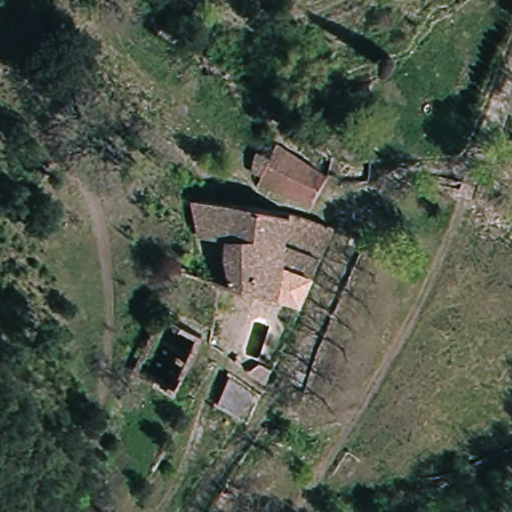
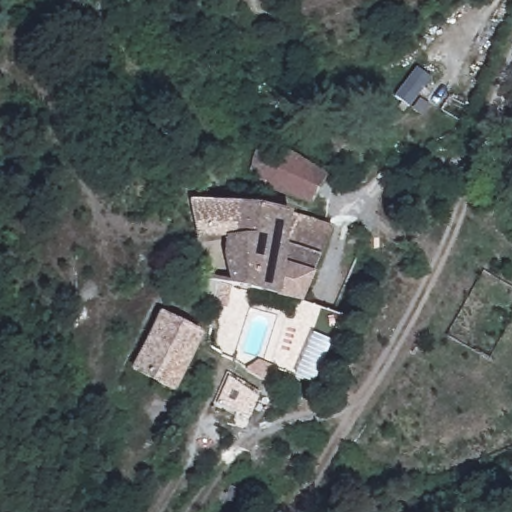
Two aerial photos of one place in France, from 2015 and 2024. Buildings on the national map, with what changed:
unchanged [(322,175),(310,202),(259,177),(271,149),(313,167),(322,175)]
unchanged [(225,280),(228,236),(196,233),(192,197),(257,206),(330,228),(301,304),(225,280)]
new [(202,335),(175,392),(132,371),(159,312),(202,335)]

